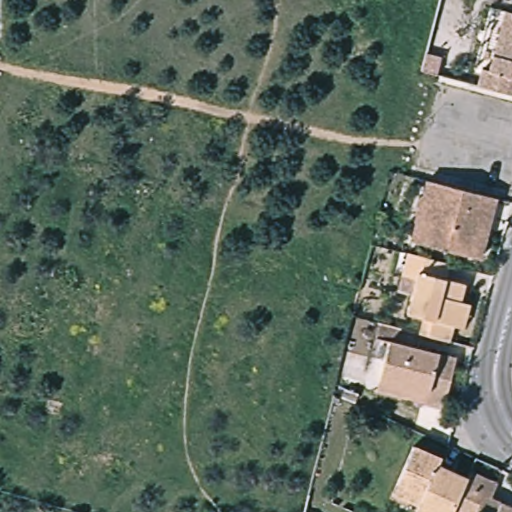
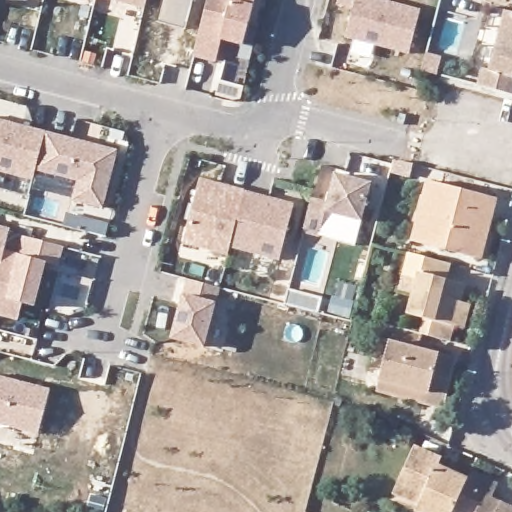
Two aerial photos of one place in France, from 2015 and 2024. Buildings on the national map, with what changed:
new [(144,8),(113,0),(146,0),(144,8)]
new [(159,0),(190,0),(183,28),(154,21),(159,0)]
new [(243,44),(219,38),(214,62),(194,57),(209,0),(254,0),(243,44)]
new [(420,10),(408,55),(345,39),(352,8),(336,5),(337,0),(383,0),(420,10)]
unchanged [(511,10),(512,10),(512,94),(484,87),(489,69),(496,71),(511,10)]
new [(45,133),(35,170),(32,181),(0,173),(0,120),(45,133)]
new [(102,207),(72,201),(76,180),(35,170),(45,133),(116,149),(102,207)]
new [(371,183),(362,221),(325,213),(318,237),(303,235),(310,198),(328,202),(333,174),(371,183)]
new [(244,191),(230,247),(228,256),(183,244),(200,179),(244,191)]
unchanged [(501,198),(486,258),(417,239),(432,180),(501,198)]
new [(244,191),(292,203),(278,258),(230,247),(244,191)]
new [(9,229),(3,251),(0,259),(0,226),(9,229)]
new [(3,251),(17,257),(18,255),(20,255),(23,236),(64,248),(59,267),(46,264),(35,306),(23,303),(18,321),(0,316),(0,259),(3,251)]
unchanged [(451,278),(471,284),(466,302),(472,303),(466,328),(460,326),(457,341),(434,335),(437,320),(412,313),(419,280),(406,276),(413,252),(454,263),(451,278)]
new [(180,277),(212,286),(197,345),(165,337),(180,277)]
unchanged [(380,391),(383,380),(394,341),(460,357),(452,391),(448,408),(380,391)]
new [(48,389),(36,433),(0,423),(0,377),(48,389)]
unchanged [(459,512),(421,512),(423,508),(399,497),(420,451),(446,463),(443,469),(472,482),(459,512)]
unchanged [(472,482),(476,475),(503,487),(497,501),(512,507),(512,512),(460,512),(459,512),(472,482)]

